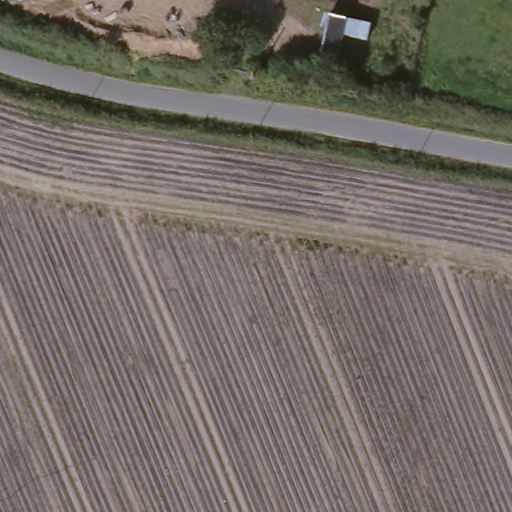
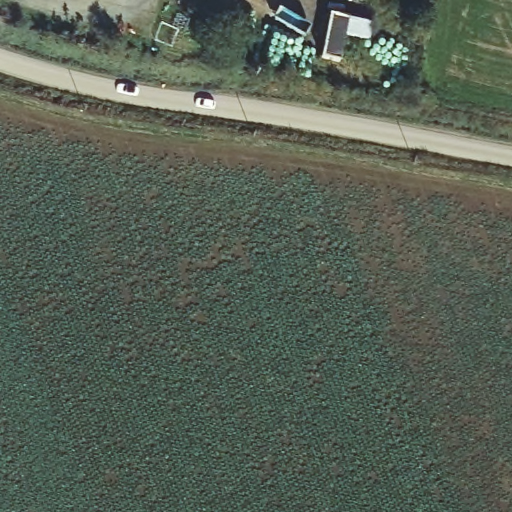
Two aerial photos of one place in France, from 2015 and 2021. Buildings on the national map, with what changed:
unchanged [(340,24),(332,67),(314,64),(323,20),(340,24)]

